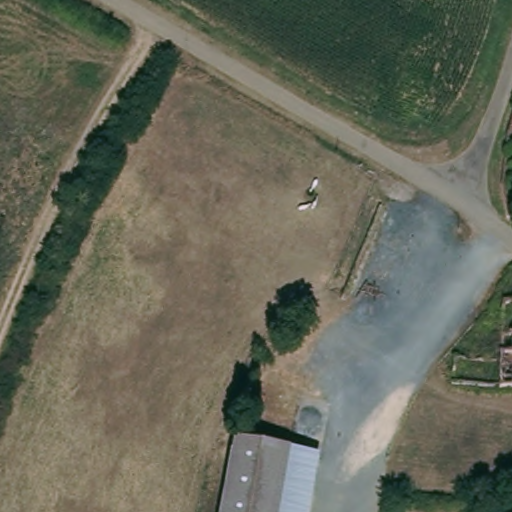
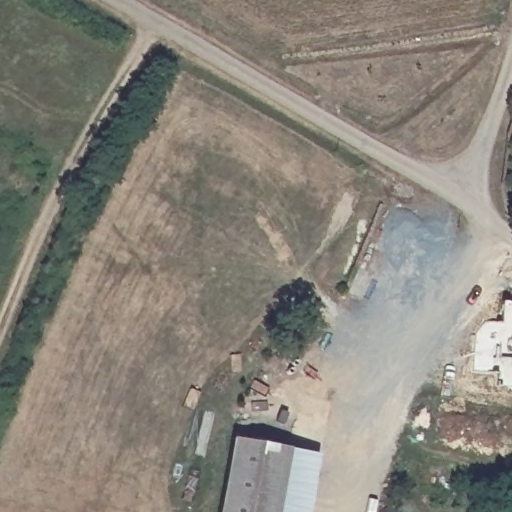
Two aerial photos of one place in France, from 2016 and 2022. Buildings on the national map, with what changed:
unchanged [(501,301),(512,303),(512,384),(501,382),(501,301)]
unchanged [(309,453),(299,512),(215,512),(229,439),(309,453)]

